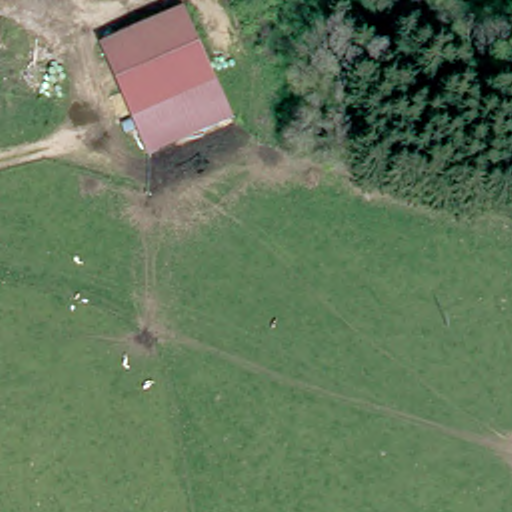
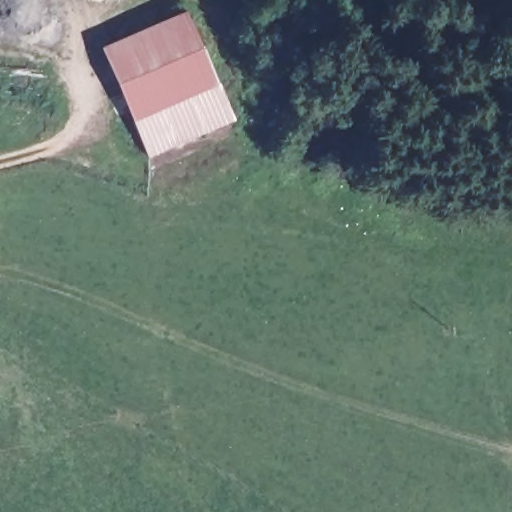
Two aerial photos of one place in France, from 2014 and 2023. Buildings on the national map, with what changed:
unchanged [(84,46),(168,10),(199,84),(116,119),(84,46)]
unchanged [(199,84),(216,122),(186,135),(133,157),(117,121),(116,119),(199,84)]

